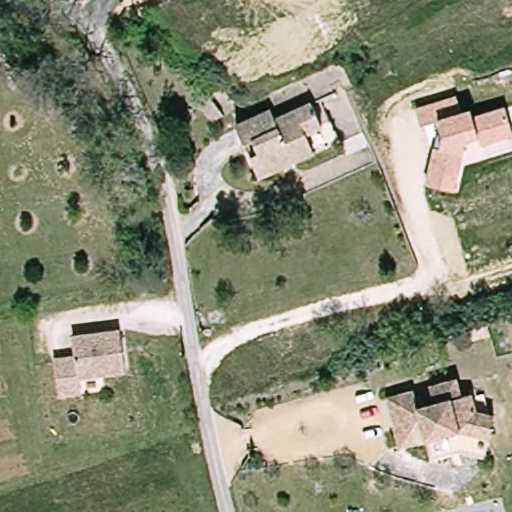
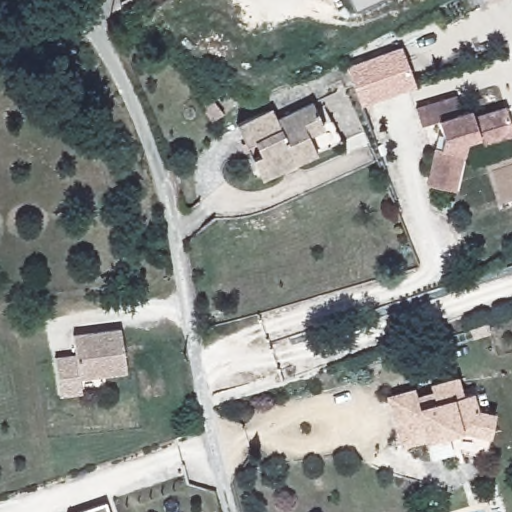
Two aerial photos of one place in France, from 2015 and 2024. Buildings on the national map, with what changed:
new [(356,10),(351,0),(375,0),(356,10)]
new [(401,47),(416,86),(361,107),(346,67),(401,47)]
unchanged [(470,110),(473,116),(505,107),(512,130),(512,135),(480,146),(480,138),(465,144),(455,193),(427,186),(438,149),(442,136),(437,120),(421,126),(416,109),(455,95),(465,112),(470,110)]
unchanged [(273,108),(278,117),(314,103),(317,110),(330,106),(345,139),(318,149),(276,166),(265,171),(263,167),(241,121),(273,108)]
unchanged [(127,372),(80,377),(82,392),(60,394),(56,357),(77,355),(75,335),(123,330),(127,372)]
unchanged [(461,398),(471,395),(476,412),(500,417),(495,438),(461,432),(405,448),(392,401),(419,394),(420,400),(436,396),(435,389),(457,382),(461,398)]

